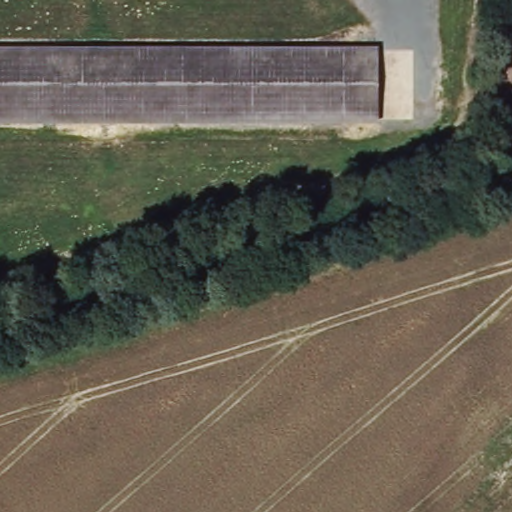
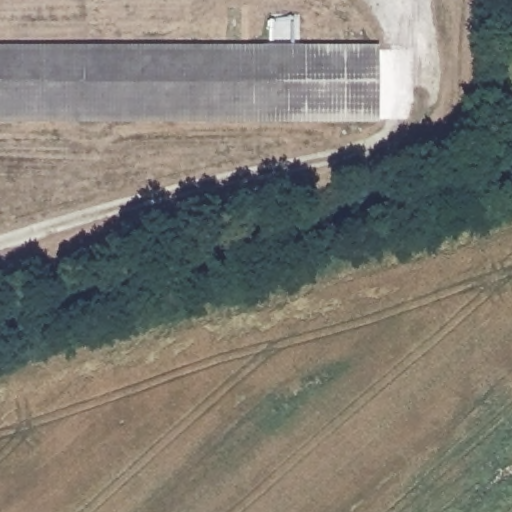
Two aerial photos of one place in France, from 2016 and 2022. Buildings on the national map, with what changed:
unchanged [(382,119),(0,117),(0,48),(385,50),(382,119)]

